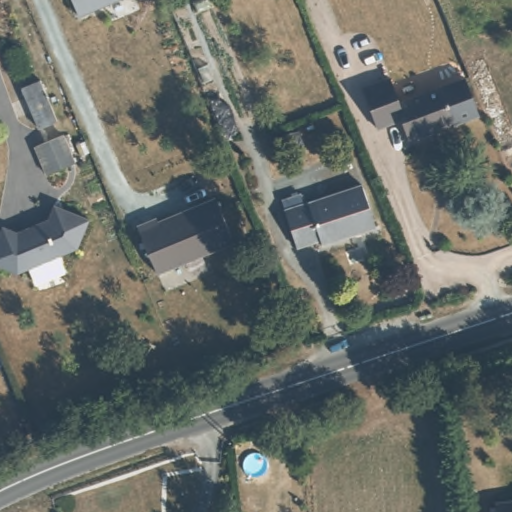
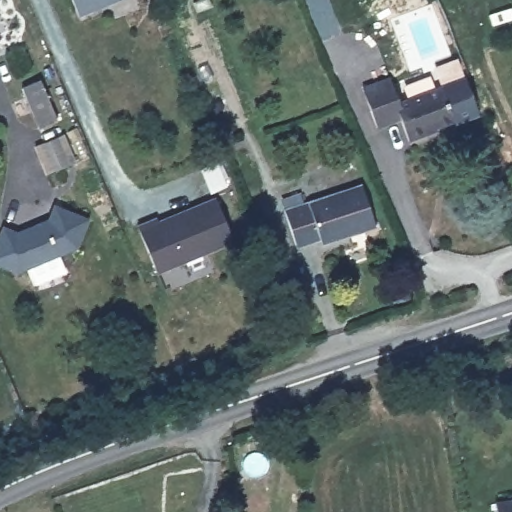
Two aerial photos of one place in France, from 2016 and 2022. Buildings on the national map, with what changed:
unchanged [(71,0),(118,0),(79,17),(71,0)]
unchanged [(41,125),(25,83),(44,76),(61,117),(41,125)]
unchanged [(392,78),(401,102),(467,78),(481,115),(455,124),(454,121),(427,132),(428,135),(411,141),(403,119),(379,128),(364,88),(392,78)]
unchanged [(62,135),(72,160),(44,171),(34,147),(62,135)]
unchanged [(373,224),(327,240),(324,236),(301,243),(289,209),(359,184),(373,224)]
unchanged [(161,223),(187,213),(185,209),(218,196),(236,240),(160,272),(139,224),(159,216),(161,223)]
unchanged [(46,215),(51,200),(87,213),(76,242),(18,270),(0,263),(0,226),(1,223),(15,229),(46,215)]
unchanged [(499,512),(497,500),(512,497),(512,512),(499,512)]

